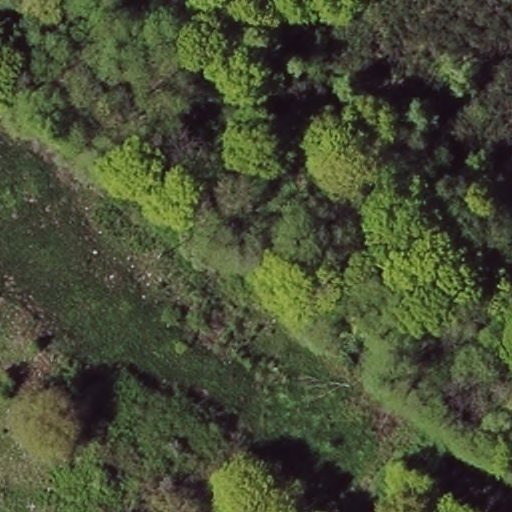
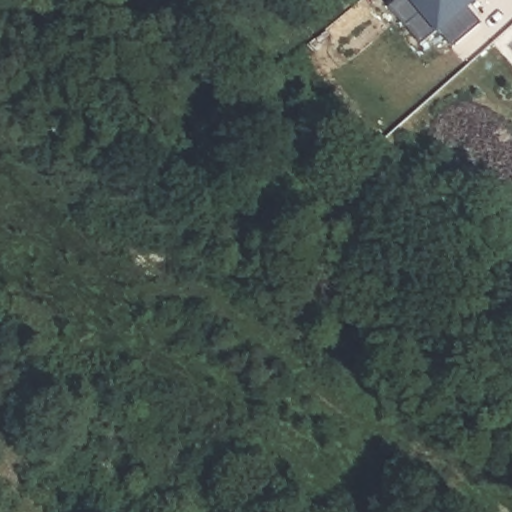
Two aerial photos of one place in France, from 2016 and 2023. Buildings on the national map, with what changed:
new [(421,14),(405,27),(388,7),(395,2),(393,0),(474,0),(467,6),(481,24),(452,48),(435,62),(420,45),(437,32),(438,30),(436,32),(421,14)]

